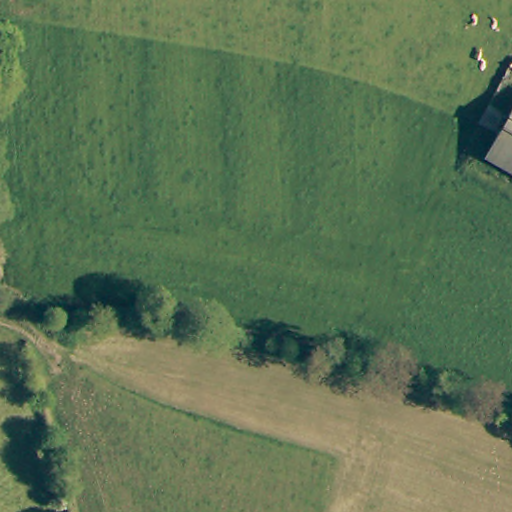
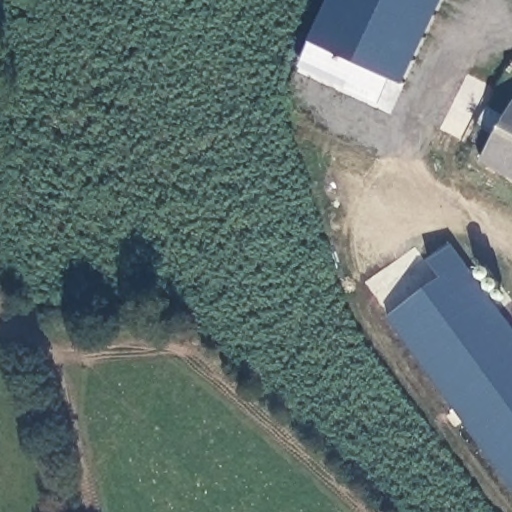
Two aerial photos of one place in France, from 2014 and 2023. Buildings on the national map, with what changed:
new [(313,39),(331,0),(445,0),(407,83),(313,39)]
unchanged [(512,104),(512,174),(482,157),(512,104)]
new [(443,278),(431,262),(453,245),(512,326),(512,487),(389,317),(443,278)]

